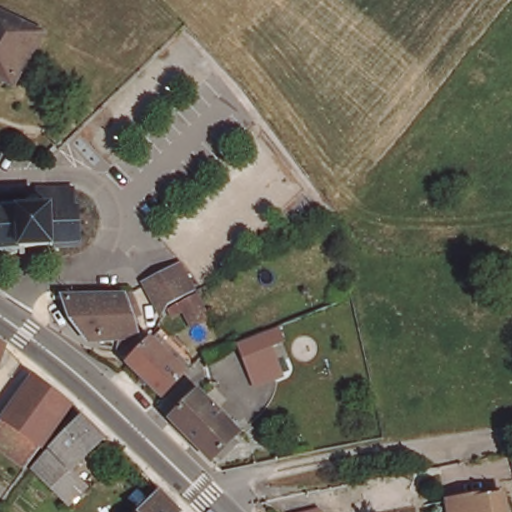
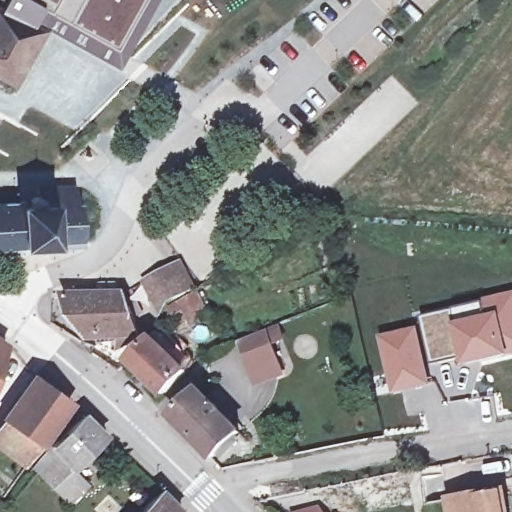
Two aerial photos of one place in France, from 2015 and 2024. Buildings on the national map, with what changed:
new [(0,0),(7,0),(5,4),(0,1),(0,0)]
new [(7,0),(148,0),(122,49),(53,13),(43,31),(2,11),(7,0)]
new [(53,13),(122,49),(148,0),(158,0),(120,70),(43,31),(53,13)]
unchanged [(10,84),(0,79),(0,13),(39,31),(10,84)]
unchanged [(0,207),(2,207),(2,204),(5,203),(5,206),(7,203),(18,202),(23,206),(23,201),(27,201),(28,208),(35,207),(35,200),(37,197),(42,198),(42,188),(81,188),(81,205),(86,204),(87,243),(63,244),(66,248),(60,252),(57,244),(30,246),(31,253),(27,254),(27,248),(22,252),(11,253),(8,249),(8,253),(5,253),(5,249),(2,249),(3,260),(0,260),(0,207)]
unchanged [(191,293),(168,304),(162,312),(148,286),(146,282),(177,266),(182,274),(191,292),(191,293)]
unchanged [(97,294),(97,293),(110,292),(110,294),(121,294),(128,291),(135,312),(136,315),(128,318),(133,337),(119,351),(112,353),(115,338),(85,340),(69,322),(60,295),(97,294)]
unchanged [(180,301),(197,293),(208,317),(192,325),(185,309),(174,316),(169,309),(180,301)]
new [(485,316),(483,300),(512,293),(512,357),(462,367),(460,357),(456,322),(485,316)]
new [(454,310),(456,322),(460,357),(429,365),(422,327),(420,318),(454,310)]
new [(422,327),(429,365),(432,386),(393,397),(378,336),(422,327)]
unchanged [(266,330),(278,360),(252,370),(240,340),(266,330)]
unchanged [(125,368),(148,344),(149,345),(158,335),(192,366),(182,376),(159,400),(125,368)]
unchanged [(0,343),(0,339),(1,340),(0,343)]
unchanged [(65,398),(22,461),(0,444),(0,415),(30,372),(65,398)]
unchanged [(182,413),(205,391),(245,433),(218,459),(177,418),(182,413)]
unchanged [(46,443),(78,410),(100,432),(68,464),(83,481),(64,500),(28,464),(46,443)]
unchanged [(494,488),(499,512),(457,512),(453,495),(494,488)]
unchanged [(142,509),(162,490),(181,510),(179,512),(134,512),(140,506),(142,509)]

